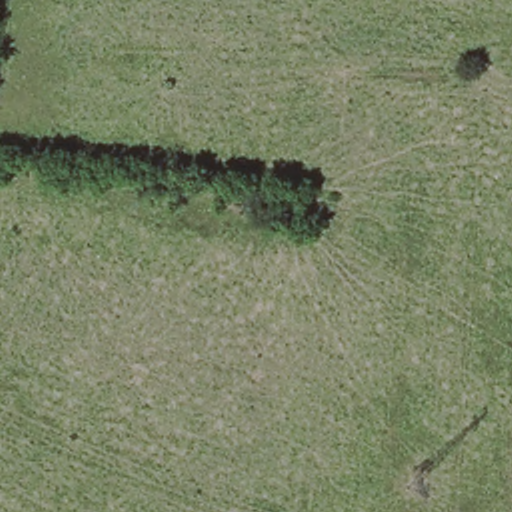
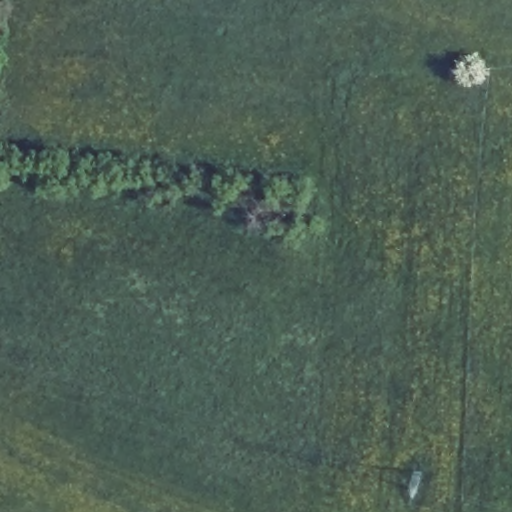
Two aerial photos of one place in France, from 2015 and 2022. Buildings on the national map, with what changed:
[]

